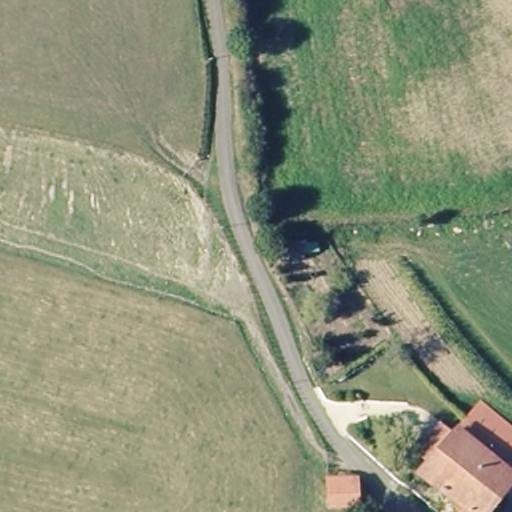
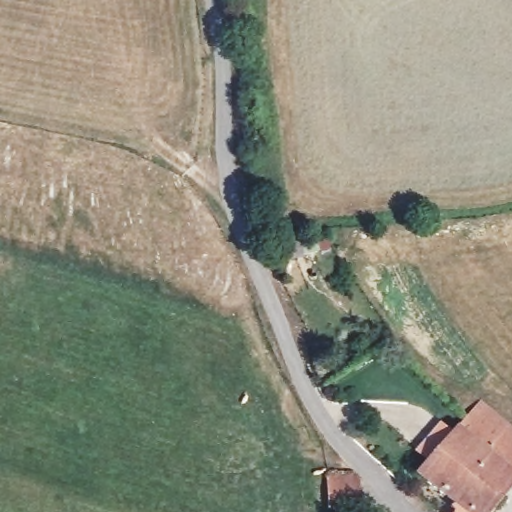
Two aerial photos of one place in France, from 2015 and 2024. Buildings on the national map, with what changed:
unchanged [(512,430),(512,467),(464,426),(483,406),(512,430)]
unchanged [(473,434),(512,467),(512,484),(487,512),(443,512),(415,487),(452,441),(464,426),(473,434)]
unchanged [(324,487),(350,485),(362,484),(363,500),(351,501),(325,504),(324,487)]

